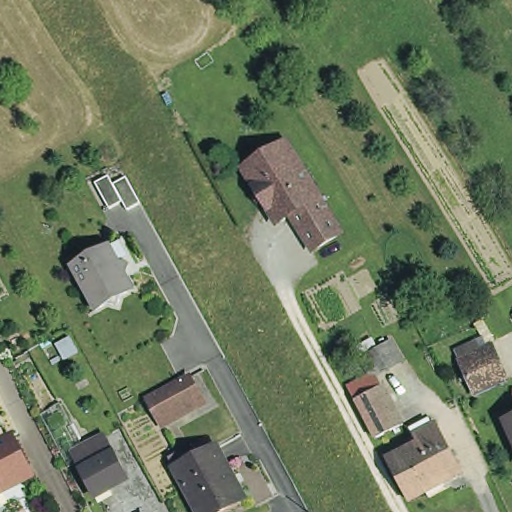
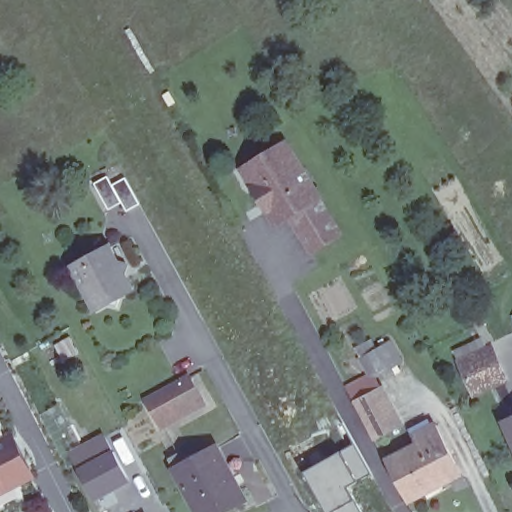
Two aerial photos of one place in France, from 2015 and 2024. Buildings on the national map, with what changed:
unchanged [(274,214),(260,191),(248,173),(258,167),(290,147),(346,238),(317,256),(295,220),(287,225),(282,228),(274,214)]
unchanged [(138,199),(140,204),(128,210),(123,202),(110,209),(96,182),(110,175),(114,184),(126,178),(138,199)]
unchanged [(72,270),(110,250),(119,266),(127,269),(125,278),(134,294),(122,301),(118,311),(108,308),(96,315),(72,270)]
unchanged [(363,361),(388,346),(400,366),(375,381),(363,361)]
unchanged [(460,366),(491,352),(506,384),(473,398),(460,366)]
unchanged [(348,390),(370,380),(389,416),(395,414),(403,430),(376,444),(348,390)]
unchanged [(160,400),(191,384),(205,410),(175,427),(160,400)]
unchanged [(392,466),(423,449),(418,440),(441,428),(467,477),(413,505),(392,466)]
unchanged [(512,430),(512,440),(508,431),(512,430)]
unchanged [(92,495),(70,452),(93,441),(106,434),(128,476),(115,483),(92,495)]
unchanged [(30,480),(0,496),(0,448),(10,442),(30,480)]
new [(355,443),(370,472),(348,486),(362,512),(326,512),(302,471),(355,443)]
unchanged [(169,471),(178,466),(184,475),(216,457),(245,509),(240,512),(192,512),(169,471)]

